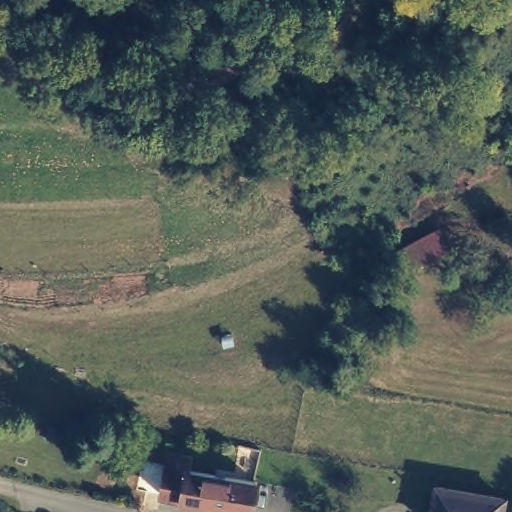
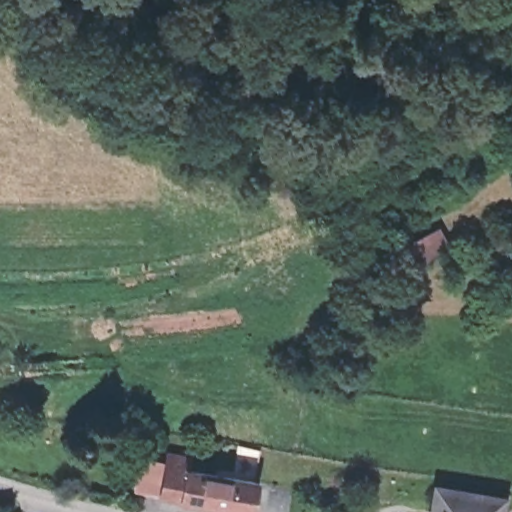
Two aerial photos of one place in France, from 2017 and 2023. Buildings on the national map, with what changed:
unchanged [(273,482),(267,511),(198,501),(198,497),(180,495),(186,461),(205,465),(205,470),(273,482)]
unchanged [(502,512),(431,512),(436,481),(505,492),(502,512)]

